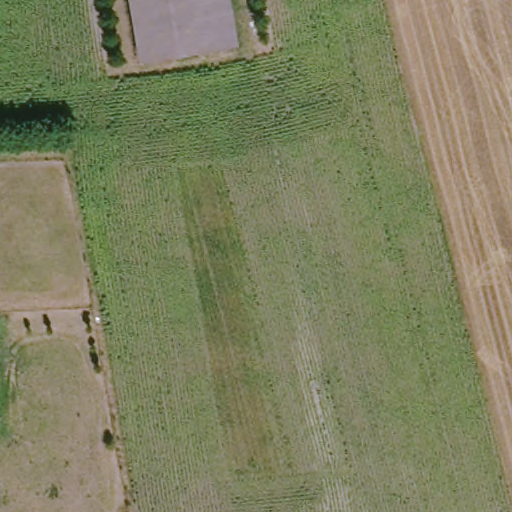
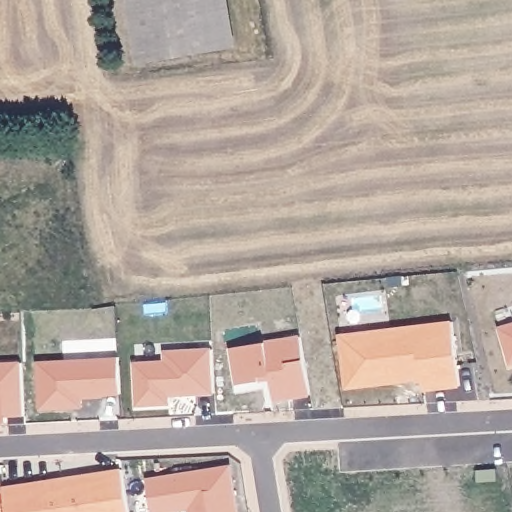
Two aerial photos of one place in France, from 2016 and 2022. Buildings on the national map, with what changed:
unchanged [(140,0),(221,0),(229,49),(150,62),(140,0)]
new [(451,323),(457,387),(422,392),(420,380),(344,389),(337,335),(451,323)]
new [(500,328),(512,325),(512,364),(511,364),(500,328)]
new [(305,334),(314,392),(278,398),(273,373),(262,374),(263,378),(240,382),(235,346),(305,334)]
new [(169,360),(168,350),(215,347),(218,391),(181,392),(181,387),(172,388),(172,402),(140,403),(138,362),(169,360)]
new [(75,406),(42,408),(40,361),(102,357),(102,356),(120,356),(122,392),(105,393),(106,395),(83,396),(84,405),(75,406)]
new [(24,362),(27,414),(9,415),(9,420),(0,421),(0,363),(24,362)]
new [(241,512),(194,512),(193,504),(185,505),(185,508),(163,512),(156,512),(150,478),(234,465),(241,512)]
new [(131,512),(71,512),(65,477),(125,468),(131,512)]
new [(71,512),(9,512),(5,487),(65,477),(71,512)]
new [(4,512),(0,512),(0,489),(4,512)]

